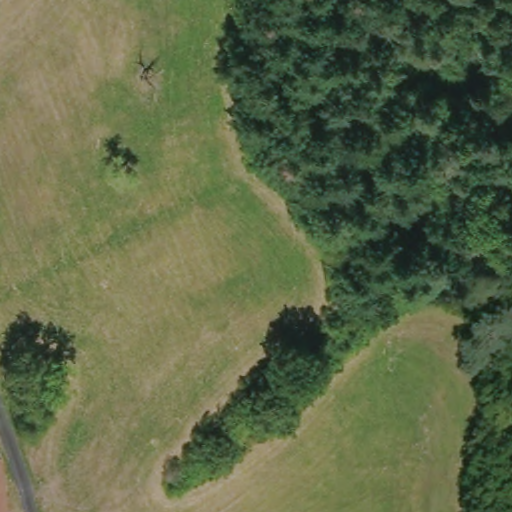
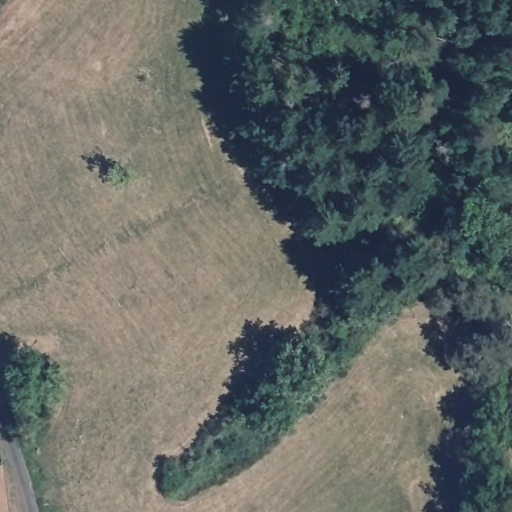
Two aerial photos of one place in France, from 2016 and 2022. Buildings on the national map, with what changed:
unchanged [(10,512),(0,512),(0,462),(3,462),(10,512)]

